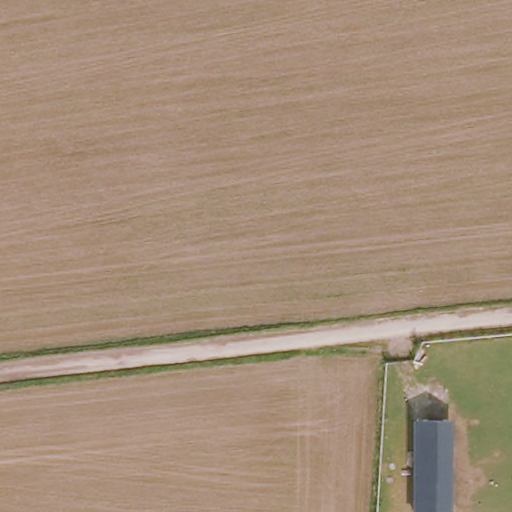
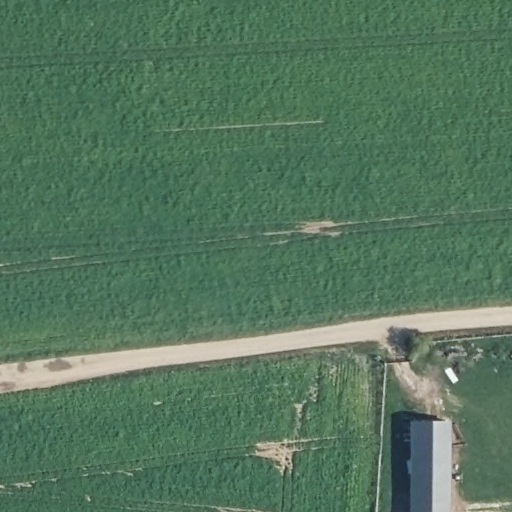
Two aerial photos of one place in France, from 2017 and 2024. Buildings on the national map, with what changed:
unchanged [(412,423),(454,423),(452,512),(412,512),(412,423)]

